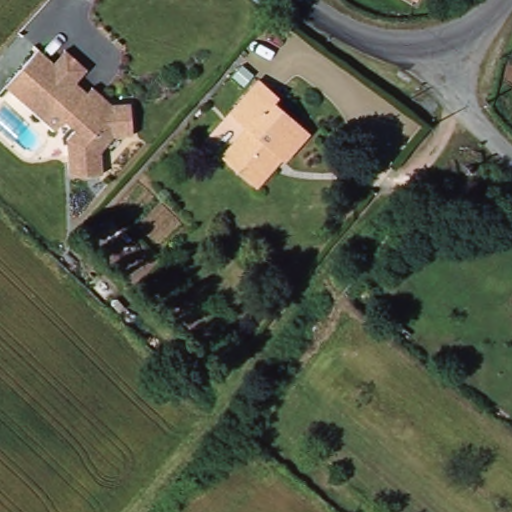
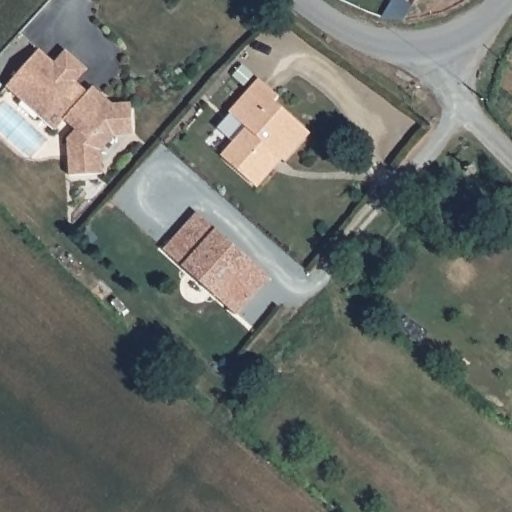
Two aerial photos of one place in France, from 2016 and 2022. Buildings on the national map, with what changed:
unchanged [(5,84),(39,49),(51,60),(61,49),(86,68),(78,80),(86,88),(91,83),(110,100),(131,99),(134,135),(113,136),(101,150),(102,172),(69,174),(68,136),(76,128),(64,117),(52,126),(5,84)]
unchanged [(228,109),(259,74),(287,98),(281,105),(315,136),(291,164),(283,157),(258,185),(221,152),(246,125),(228,109)]
new [(160,250),(196,211),(271,278),(236,316),(160,250)]

